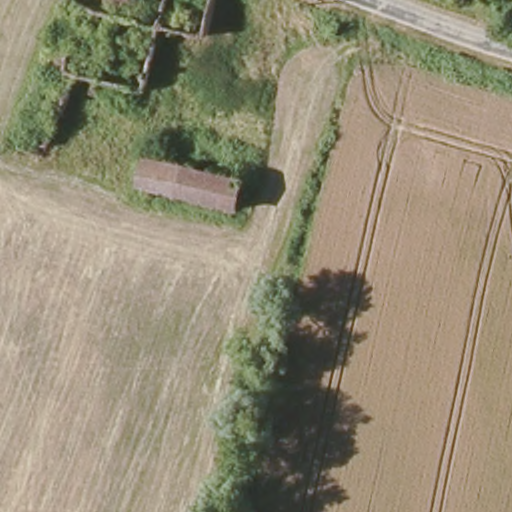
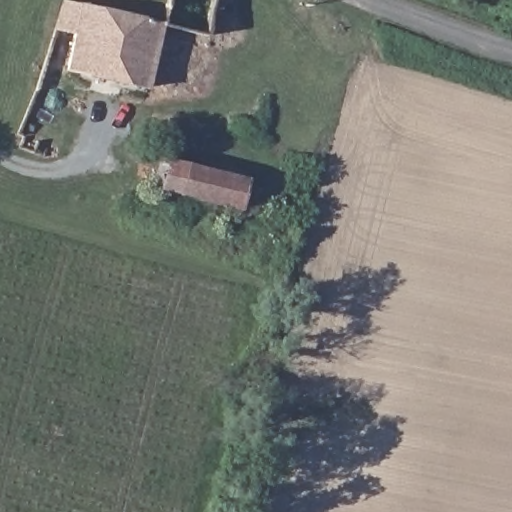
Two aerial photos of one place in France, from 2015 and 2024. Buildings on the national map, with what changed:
demolished [(104,11),(106,0),(169,0),(166,11),(104,11)]
new [(75,35),(54,30),(61,1),(162,24),(148,89),(67,71),(75,35)]
unchanged [(239,207),(144,184),(150,156),(245,181),(239,207)]

